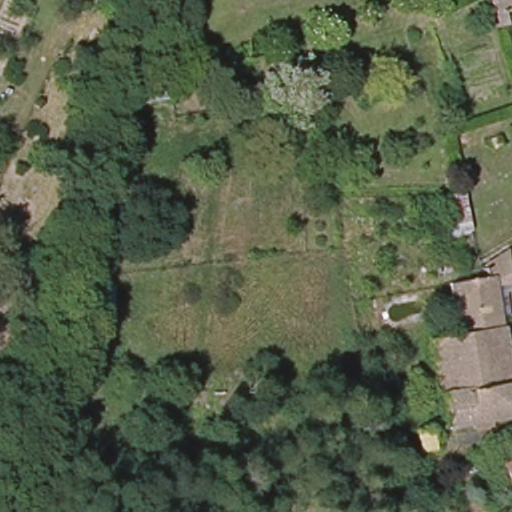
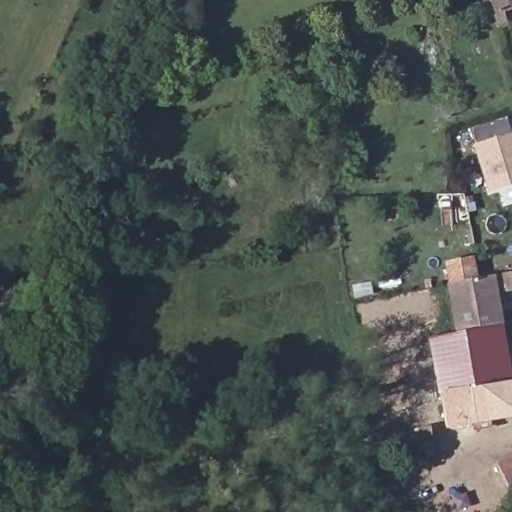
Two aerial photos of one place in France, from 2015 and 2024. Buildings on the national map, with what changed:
unchanged [(512,0),(512,9),(503,12),(506,25),(497,27),(489,0),(512,0)]
new [(475,146),(470,130),(508,117),(512,132),(512,187),(490,194),(475,146)]
unchanged [(456,336),(447,284),(488,276),(482,265),(502,255),(508,272),(507,273),(509,291),(498,293),(501,312),(494,312),(497,327),(456,336)]
unchanged [(512,418),(444,428),(428,342),(456,336),(497,327),(512,412),(512,418)]
unchanged [(417,446),(415,428),(428,426),(430,445),(417,446)]
unchanged [(512,482),(505,485),(495,463),(512,456),(512,482)]

